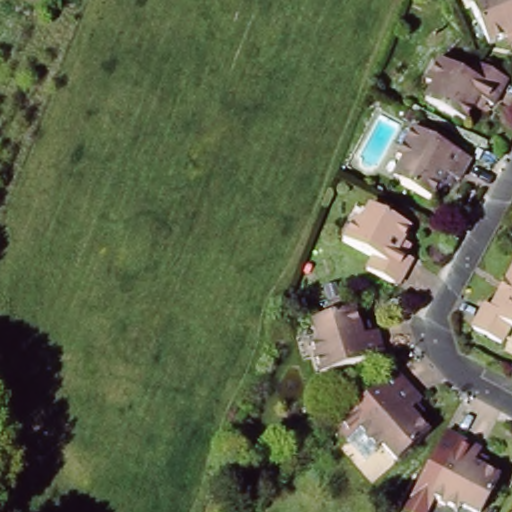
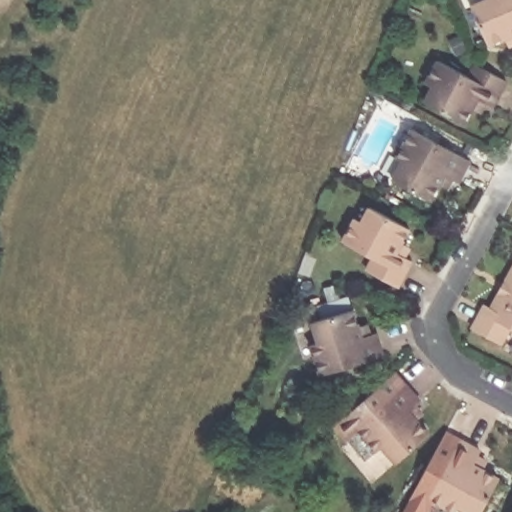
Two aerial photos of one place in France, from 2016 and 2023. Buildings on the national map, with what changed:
unchanged [(509,31),(483,42),(465,3),(474,0),(512,0),(512,37),(509,31)]
unchanged [(492,102),(477,94),(463,119),(424,98),(432,84),(425,80),(437,58),(445,62),(469,75),(475,62),(482,65),(505,78),(492,102)]
unchanged [(470,160),(457,182),(444,176),(430,201),(392,181),(402,162),(395,158),(401,148),(410,130),(470,160)]
unchanged [(373,254),(350,241),(343,237),(355,215),(362,219),(370,205),(409,227),(395,251),(410,260),(395,284),(372,271),(367,268),(373,254)]
unchanged [(509,330),(499,346),(472,330),(484,307),(489,310),(497,297),(504,283),(512,269),(512,332),(509,330)]
unchanged [(317,338),(312,317),(351,305),(360,333),(375,328),(382,352),(320,371),(314,353),(310,341),(317,338)]
unchanged [(409,379),(435,410),(425,419),(444,441),(411,469),(397,453),(380,467),(349,431),(409,379)]
unchanged [(424,494),(454,437),(477,449),(470,461),(496,475),(476,512),(472,512),(457,503),(452,511),(442,505),(424,494)]

